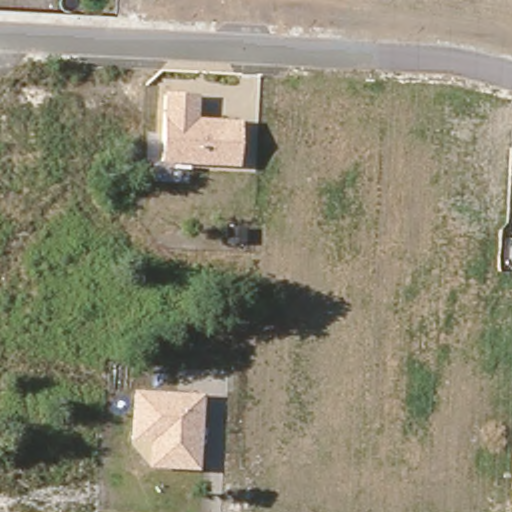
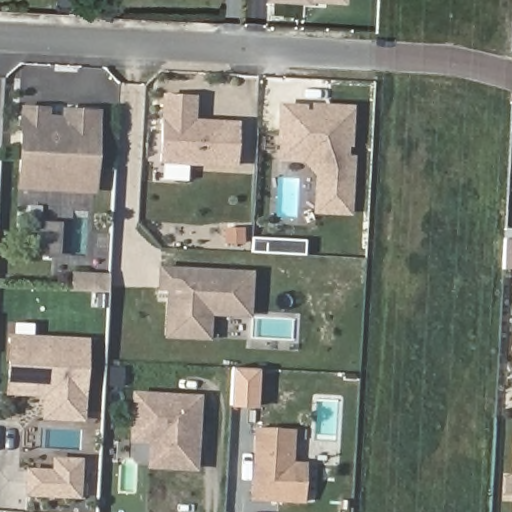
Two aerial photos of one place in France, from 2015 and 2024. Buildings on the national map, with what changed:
new [(317,0),(306,0),(352,0),(352,2),(317,0)]
unchanged [(198,118),(242,121),(238,168),(158,164),(159,93),(198,94),(198,118)]
new [(355,104),(353,146),(350,146),(350,155),(356,155),(353,215),(313,214),(316,175),(303,161),(278,161),(279,144),(278,144),(280,104),(307,104),(307,109),(313,109),(312,104),(355,104)]
new [(98,193),(97,194),(17,190),(21,105),(52,106),(51,115),(62,115),(62,108),(102,109),(98,193)]
new [(512,239),(512,270),(506,269),(507,239),(512,239)]
new [(252,317),(212,315),(212,340),(165,339),(168,289),(159,290),(159,266),(255,270),(252,317)]
new [(77,275),(111,277),(111,292),(76,289),(77,275)]
new [(86,421),(43,420),(44,396),(6,394),(9,334),(90,338),(86,421)]
unchanged [(198,471),(148,469),(149,443),(129,443),(132,391),(203,394),(198,471)]
new [(292,463),(306,464),(305,502),(252,500),(257,427),(295,429),(292,463)]
new [(82,498),(25,497),(24,469),(51,469),(52,457),(84,457),(82,498)]

